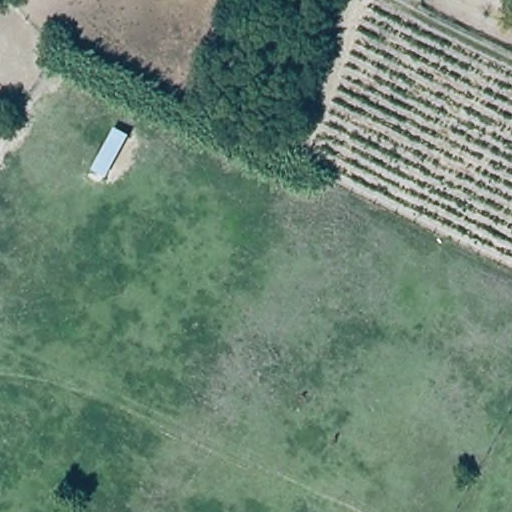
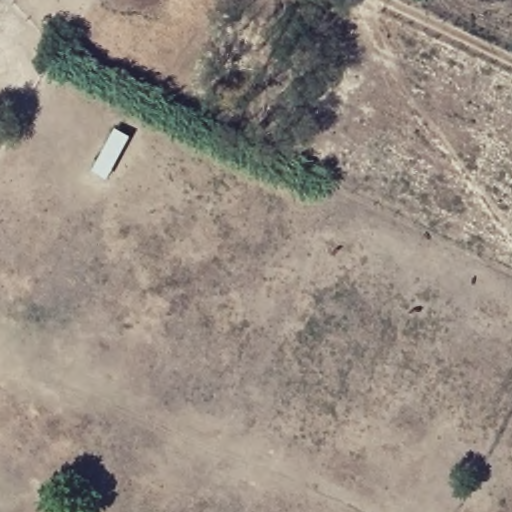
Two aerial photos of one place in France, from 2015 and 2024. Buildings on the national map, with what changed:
unchanged [(87,172),(111,126),(132,136),(105,180),(87,172)]

